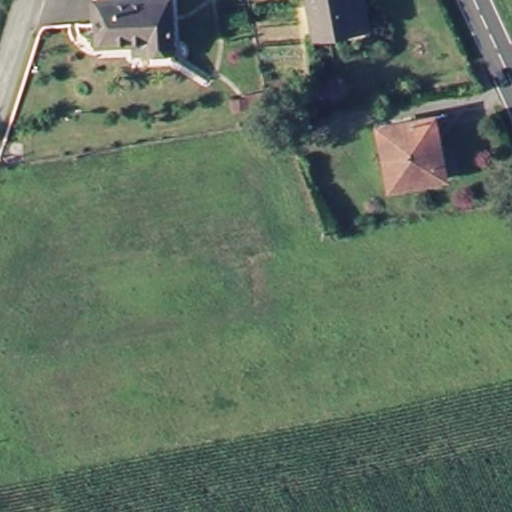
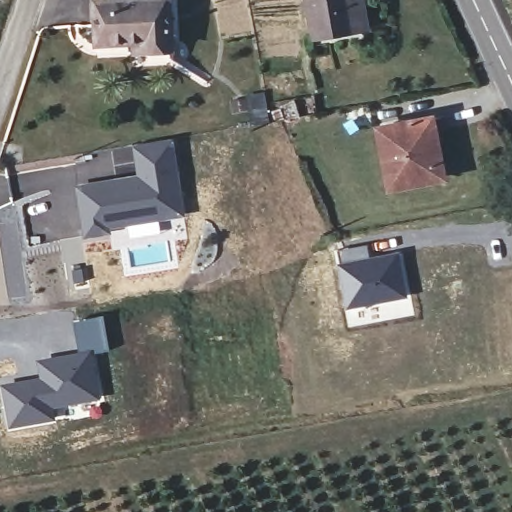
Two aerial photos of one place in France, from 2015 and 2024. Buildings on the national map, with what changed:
unchanged [(130,48),(112,49),(108,4),(164,0),(170,54),(144,56),(130,58),(130,48)]
unchanged [(358,34),(314,42),(307,0),(362,0),(368,33),(358,34)]
unchanged [(435,120),(446,179),(394,186),(383,128),(435,120)]
new [(138,174),(132,145),(175,138),(187,216),(111,230),(84,239),(75,184),(138,174)]
new [(368,244),(371,256),(402,250),(414,314),(381,320),(377,305),(346,312),(336,250),(368,244)]
new [(37,359),(80,351),(74,322),(103,315),(110,349),(96,352),(104,399),(69,406),(71,417),(8,429),(0,383),(40,375),(37,359)]

